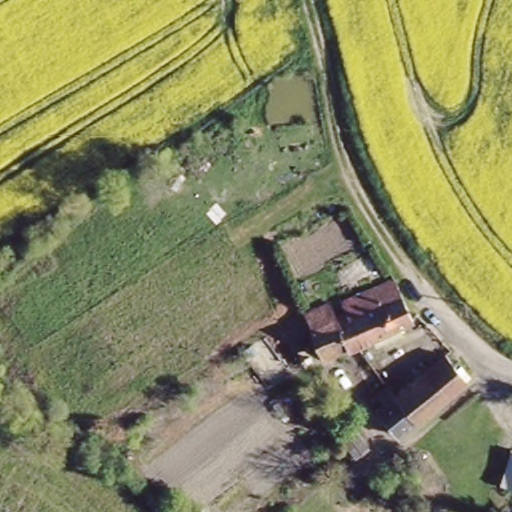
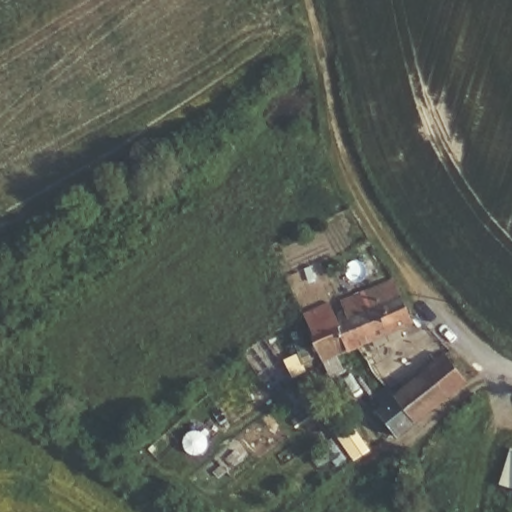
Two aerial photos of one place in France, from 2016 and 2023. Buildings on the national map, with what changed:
unchanged [(388,271),(410,319),(317,359),(290,309),(388,271)]
unchanged [(442,354),(467,383),(393,436),(372,402),(442,354)]
unchanged [(507,487),(512,470),(512,489),(507,487)]

